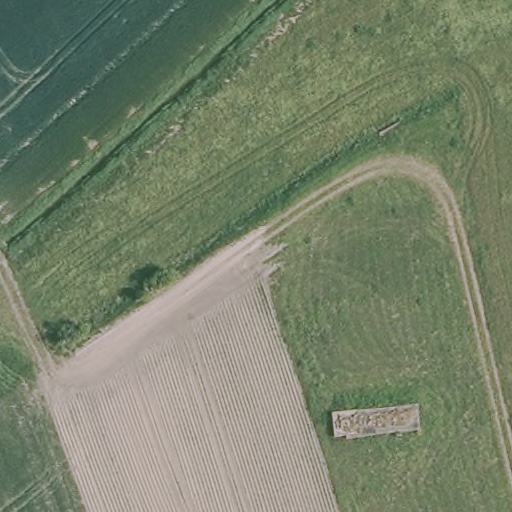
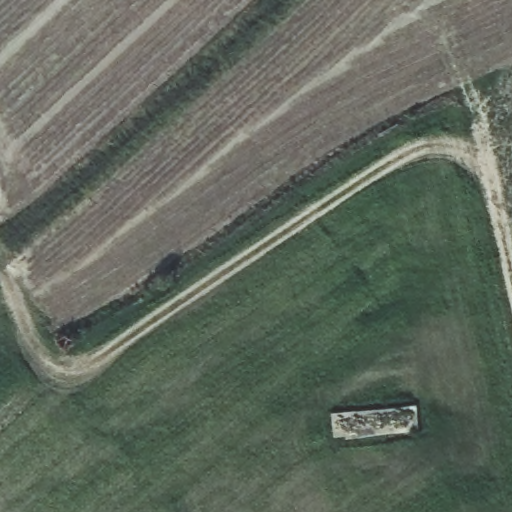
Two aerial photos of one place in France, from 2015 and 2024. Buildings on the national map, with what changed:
unchanged [(330,441),(329,414),(412,410),(415,435),(330,441)]

